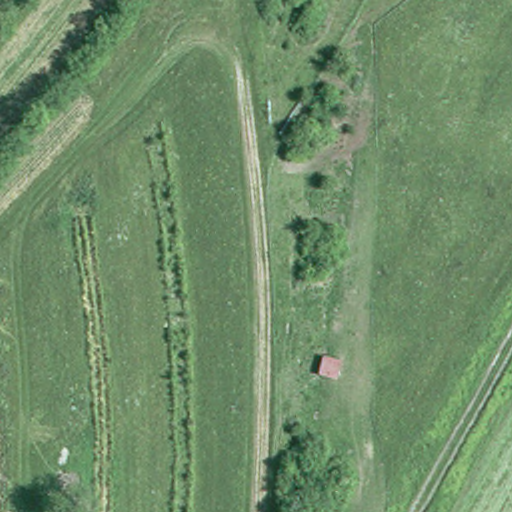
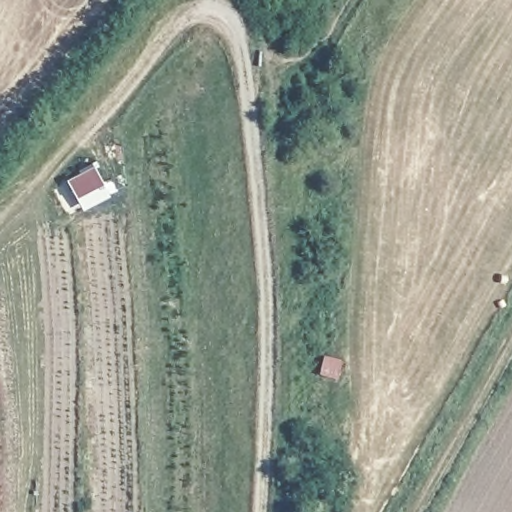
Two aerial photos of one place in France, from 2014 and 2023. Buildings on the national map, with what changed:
new [(90,166),(100,187),(72,201),(62,181),(90,166)]

